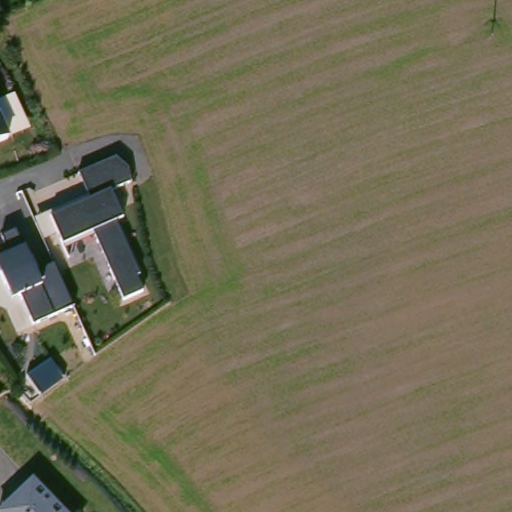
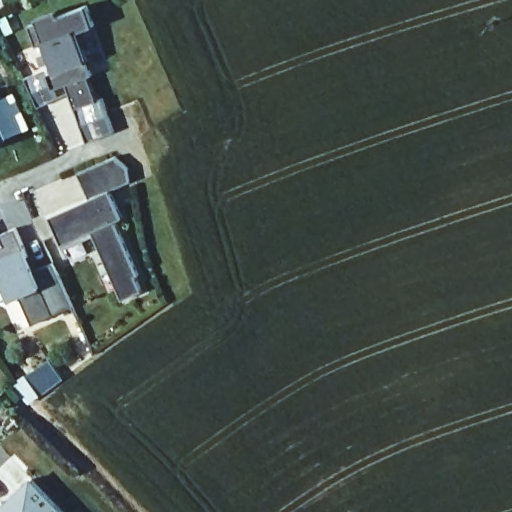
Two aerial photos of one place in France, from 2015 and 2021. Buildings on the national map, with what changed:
new [(68,85),(54,89),(58,100),(40,107),(29,78),(47,71),(49,75),(57,73),(47,43),(38,47),(31,27),(41,24),(39,17),(59,11),(62,17),(87,8),(94,27),(83,32),(92,61),(86,63),(91,77),(88,78),(98,102),(102,100),(114,133),(88,142),(68,85)]
unchanged [(0,145),(0,95),(18,136),(0,145)]
unchanged [(113,190),(126,218),(118,222),(147,292),(123,301),(94,232),(64,246),(59,235),(44,241),(34,220),(50,215),(93,197),(81,173),(118,156),(131,169),(135,180),(113,190)]
unchanged [(19,296),(11,300),(0,275),(0,257),(1,256),(0,254),(0,251),(24,241),(38,268),(54,262),(75,307),(34,326),(19,296)]
unchanged [(67,512),(0,512),(0,506),(33,474),(67,512)]

